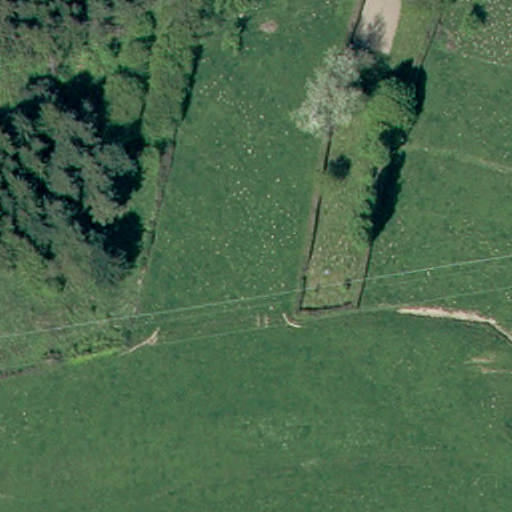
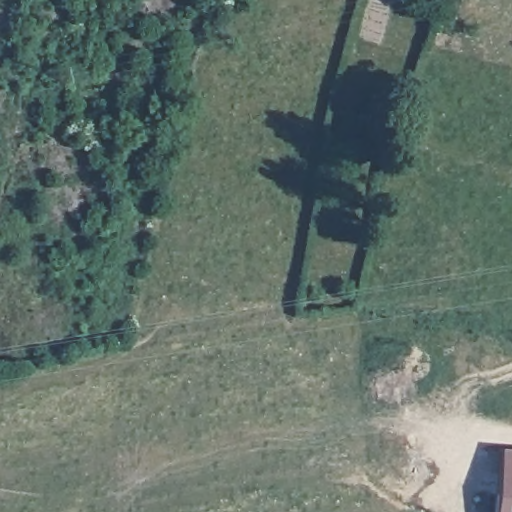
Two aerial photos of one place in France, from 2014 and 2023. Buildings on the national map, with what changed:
new [(512,451),(512,512),(494,512),(497,450),(512,451)]

